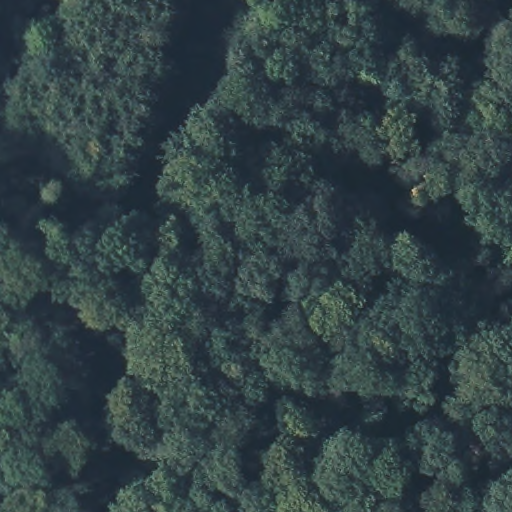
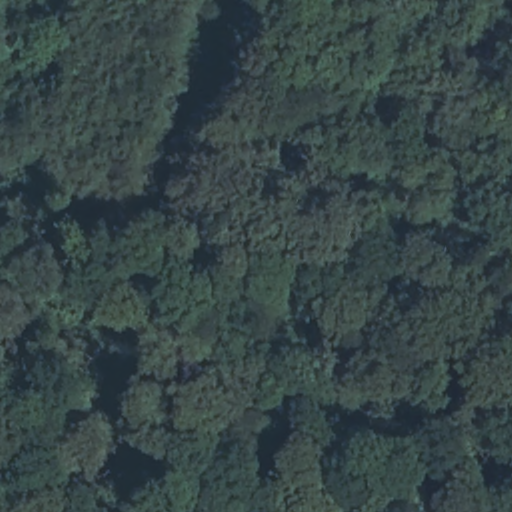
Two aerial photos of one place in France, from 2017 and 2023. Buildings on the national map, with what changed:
[]

